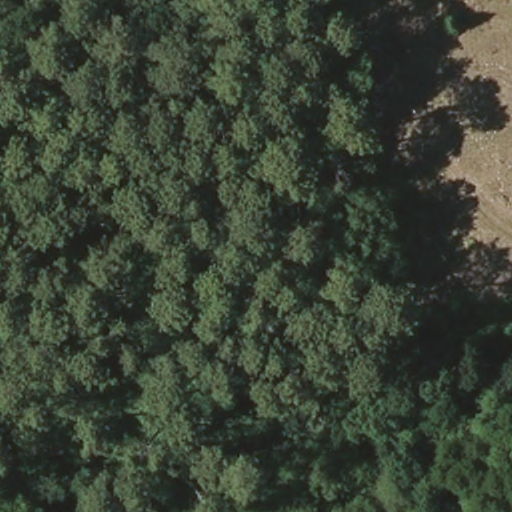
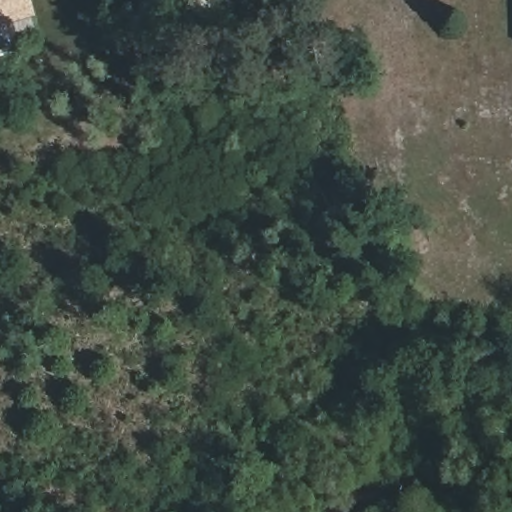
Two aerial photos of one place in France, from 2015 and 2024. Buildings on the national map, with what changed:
new [(33,15),(0,25),(0,0),(28,0),(33,15)]

